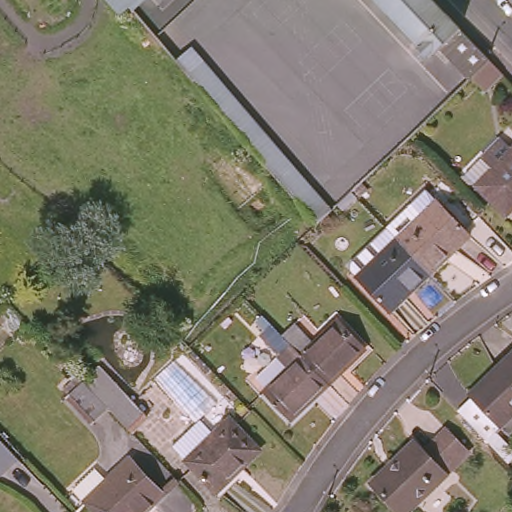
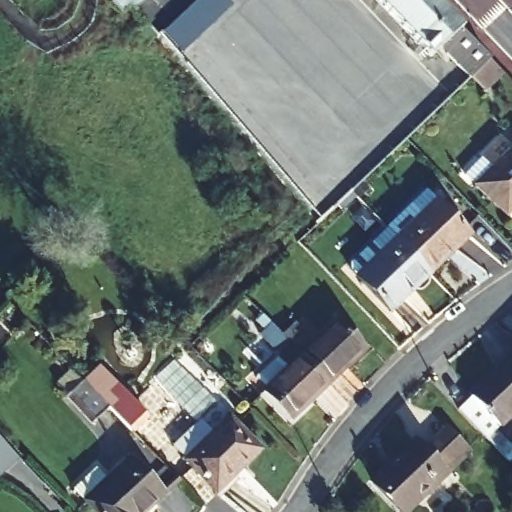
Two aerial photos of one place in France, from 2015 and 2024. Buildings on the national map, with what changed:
unchanged [(153,47),(122,14),(110,0),(154,0),(177,25),(171,31),(153,47)]
unchanged [(488,91),(472,76),(442,46),(431,56),(379,0),(439,0),(492,57),(490,59),(505,74),(488,91)]
unchanged [(340,213),(324,229),(323,229),(256,157),(190,86),(168,63),(153,47),(171,31),(340,213)]
unchanged [(512,149),(512,211),(506,217),(475,186),(477,184),(466,173),(502,139),(512,149)]
unchanged [(393,242),(433,204),(464,237),(445,255),(441,251),(421,271),(393,242)]
unchanged [(384,313),(352,280),(393,242),(421,271),(398,292),(401,296),(384,313)]
unchanged [(281,334),(295,321),(313,341),(337,317),(365,348),(329,383),(281,334)]
unchanged [(281,334),(329,383),(292,419),(262,388),(264,386),(255,376),(277,354),(258,335),(271,323),(281,334)]
unchanged [(116,418),(99,434),(73,407),(90,391),(85,385),(100,370),(135,408),(147,421),(132,435),(120,422),(116,418)]
unchanged [(499,390),(496,387),(512,372),(512,433),(493,452),(465,422),(499,390)]
unchanged [(198,421),(212,436),(229,420),(258,450),(215,493),(171,448),(198,421)]
unchanged [(413,452),(421,461),(445,438),(471,465),(429,506),(396,469),(413,452)]
unchanged [(22,467),(1,486),(0,484),(0,442),(22,467)]
unchanged [(422,512),(384,512),(370,498),(393,476),(391,473),(396,469),(429,506),(422,512)]
unchanged [(113,492),(136,470),(163,500),(150,512),(92,512),(80,500),(101,480),(113,492)]

